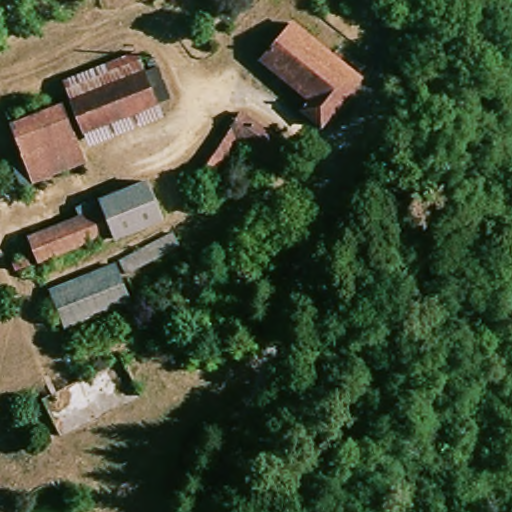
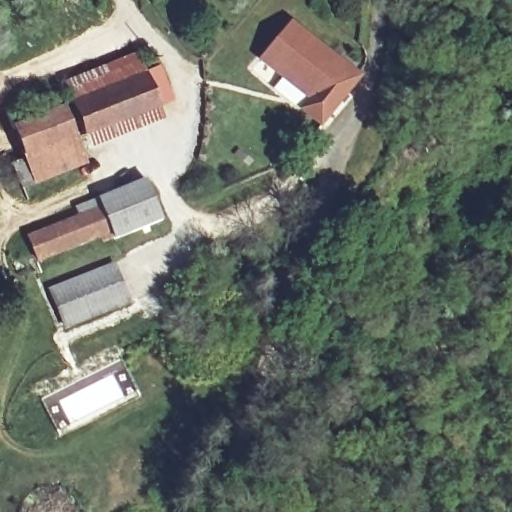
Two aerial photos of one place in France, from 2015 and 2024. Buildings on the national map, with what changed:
unchanged [(271,56),(298,22),(365,77),(326,122),(312,107),(320,97),(271,56)]
unchanged [(92,139),(70,79),(134,56),(143,83),(163,75),(175,105),(92,139)]
unchanged [(30,187),(18,164),(27,160),(13,124),(67,105),(90,163),(30,187)]
unchanged [(255,159),(261,150),(249,139),(233,126),(245,111),(288,147),(276,162),(270,171),(255,159)]
unchanged [(219,179),(211,173),(205,180),(195,172),(223,137),(233,126),(249,139),(219,179)]
unchanged [(108,244),(105,236),(94,214),(89,201),(137,179),(157,222),(108,244)]
unchanged [(43,264),(31,240),(94,214),(105,236),(43,264)]
unchanged [(172,234),(178,246),(125,277),(121,264),(172,234)]
unchanged [(133,302),(75,327),(56,290),(115,266),(133,302)]

